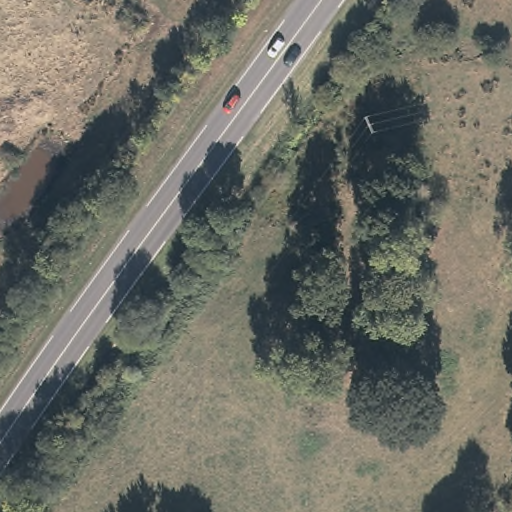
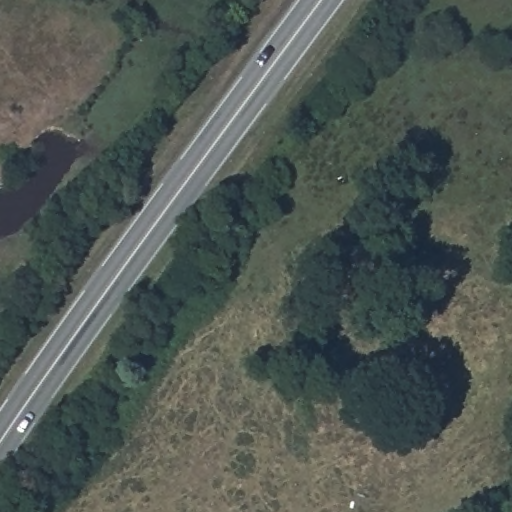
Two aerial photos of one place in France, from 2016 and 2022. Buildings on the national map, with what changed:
[]

